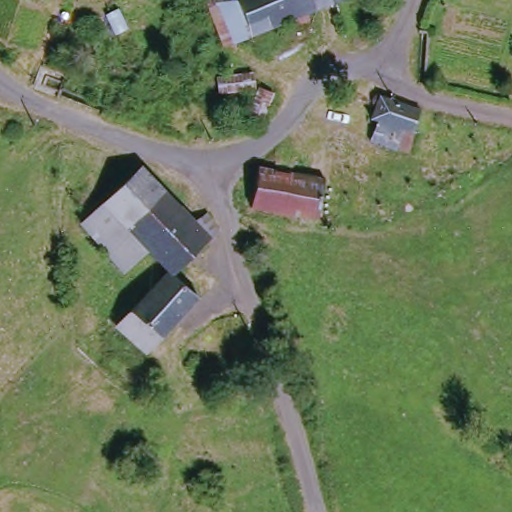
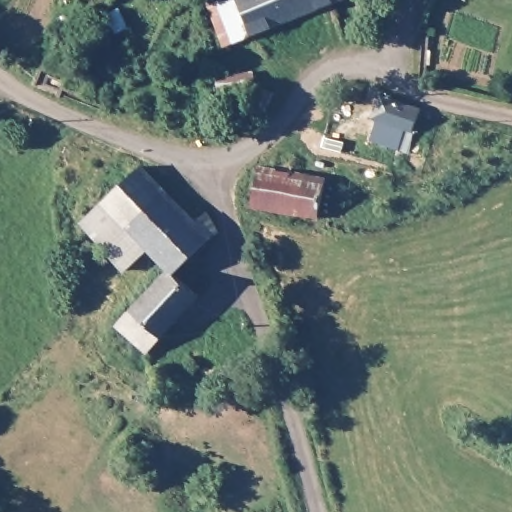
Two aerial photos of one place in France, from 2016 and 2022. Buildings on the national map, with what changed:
unchanged [(208,0),(336,0),(225,43),(208,0)]
unchanged [(255,88),(220,93),(217,75),(253,71),(255,88)]
unchanged [(394,135),(367,127),(372,109),(367,108),(375,81),(417,97),(410,119),(405,139),(394,135)]
unchanged [(259,86),(275,92),(265,118),(249,112),(259,86)]
unchanged [(310,215),(241,202),(243,187),(248,164),(251,161),(262,163),(316,171),(310,215)]
unchanged [(117,265),(75,219),(90,205),(137,163),(188,217),(200,212),(212,231),(176,263),(169,269),(195,292),(175,313),(143,347),(115,319),(141,292),(117,265)]

